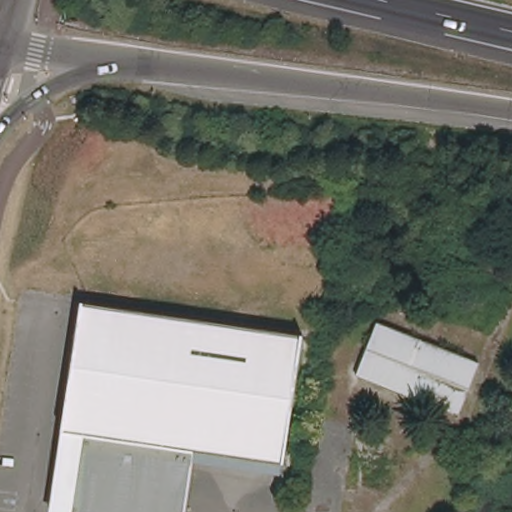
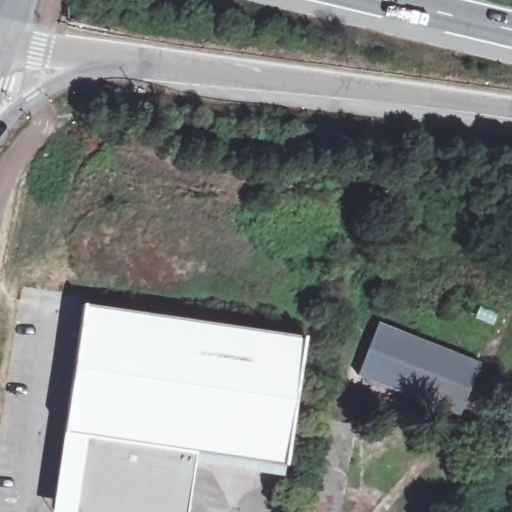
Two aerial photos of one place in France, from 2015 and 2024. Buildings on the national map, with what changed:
unchanged [(65,423),(83,312),(85,299),(122,305),(305,333),(286,461),(196,447),(193,465),(184,463),(178,500),(187,501),(186,512),(80,512),(57,508),(62,481),(57,480),(65,423)]
unchanged [(377,320),(482,361),(460,415),(356,372),(377,320)]

